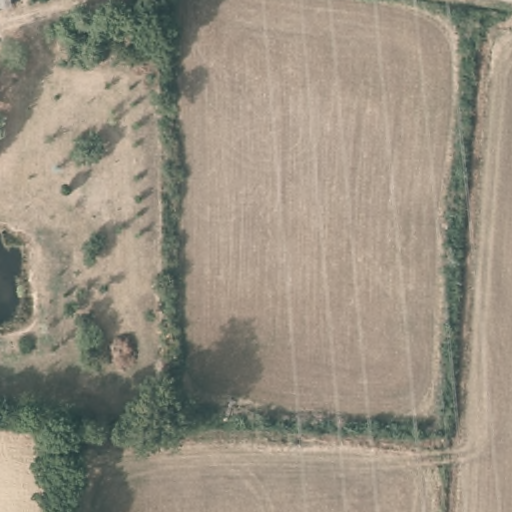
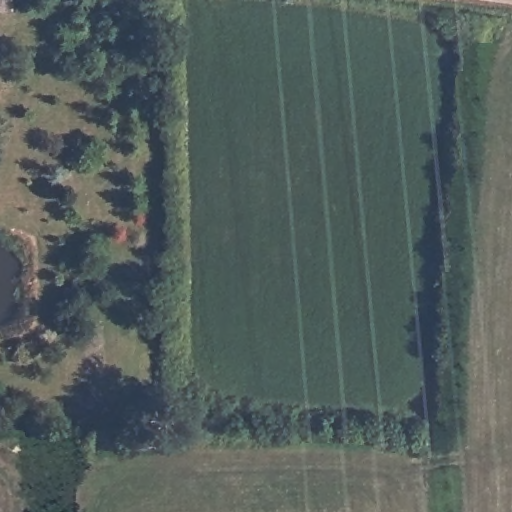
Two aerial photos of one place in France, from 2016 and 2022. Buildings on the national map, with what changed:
unchanged [(0,12),(0,0),(11,0),(12,11),(0,12)]

